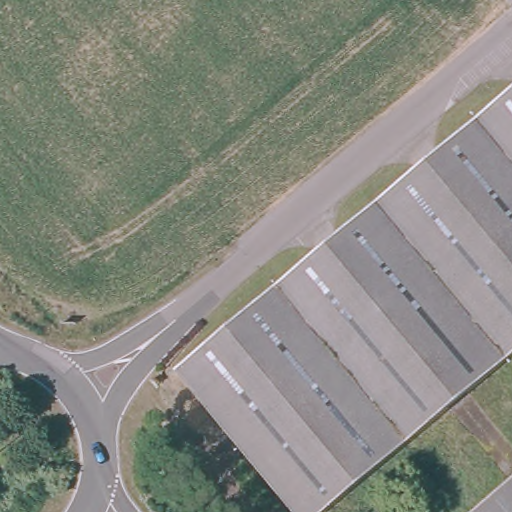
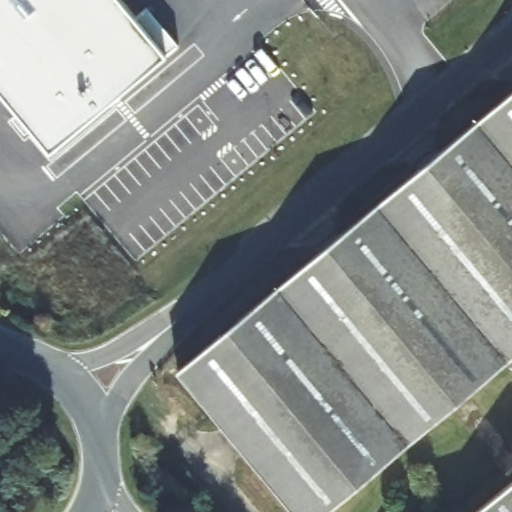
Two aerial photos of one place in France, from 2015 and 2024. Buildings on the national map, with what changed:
new [(60,176),(0,103),(0,0),(122,0),(181,68),(60,176)]
unchanged [(175,375),(512,92),(512,360),(331,512),(291,512),(175,375)]
unchanged [(512,486),(512,512),(481,512),(512,486)]

